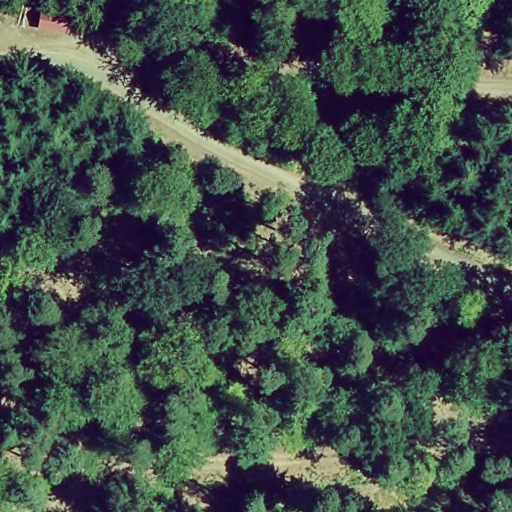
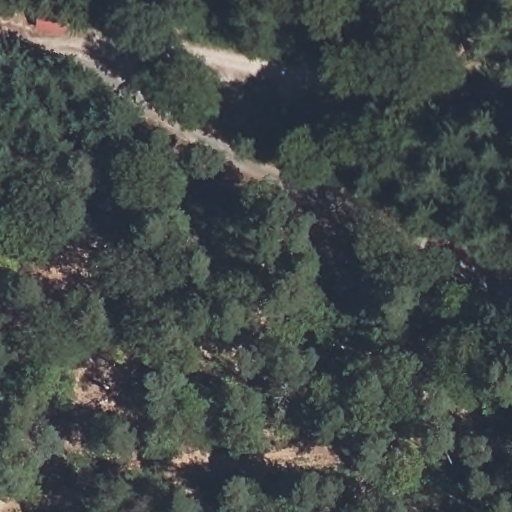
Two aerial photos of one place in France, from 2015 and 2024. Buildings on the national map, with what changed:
unchanged [(42,24),(44,11),(73,14),(70,33),(38,29),(42,24)]

